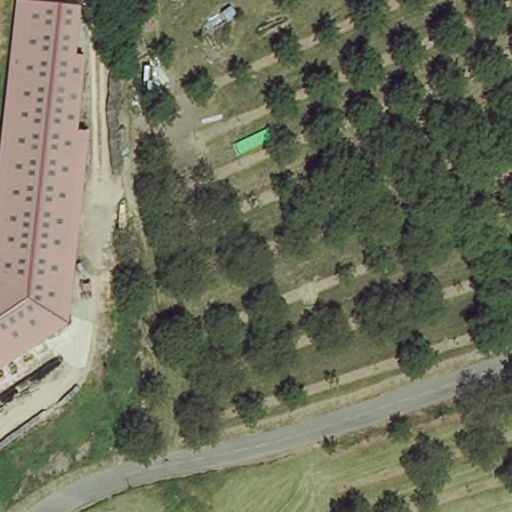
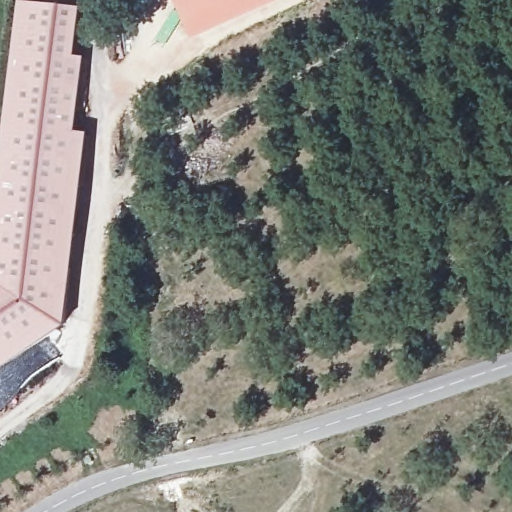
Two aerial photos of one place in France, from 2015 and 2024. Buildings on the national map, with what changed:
new [(192,39),(174,0),(280,0),(192,39)]
unchanged [(17,2),(79,7),(76,57),(85,58),(78,132),(91,132),(68,323),(0,368),(0,151),(17,2)]

